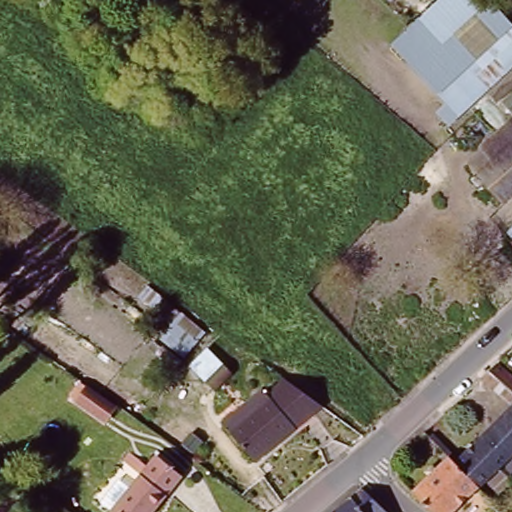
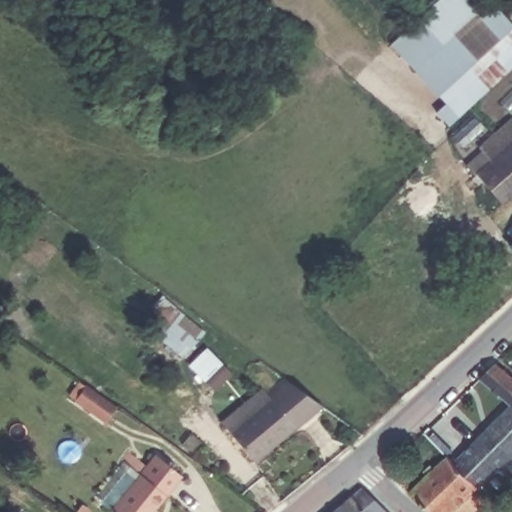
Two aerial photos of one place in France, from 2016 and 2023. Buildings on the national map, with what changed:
unchanged [(449,126),(435,111),(445,101),(389,44),(435,0),(491,0),(512,23),(512,67),(449,126)]
unchanged [(469,162),(482,151),(480,147),(512,119),(512,142),(477,172),(469,162)]
unchanged [(503,202),(477,172),(512,142),(512,194),(503,202)]
unchanged [(512,240),(512,248),(508,244),(512,240)]
unchanged [(489,482),(498,491),(488,501),(479,492),(469,481),(455,467),(512,412),(481,381),(496,366),(512,383),(512,459),(489,482)]
unchanged [(320,404),(255,460),(229,431),(269,396),(266,392),(283,377),(320,404)]
unchanged [(189,475),(160,512),(109,512),(106,510),(154,448),(189,475)]
unchanged [(431,512),(413,494),(448,460),(455,467),(469,481),(479,492),(458,512),(431,512)]
unchanged [(384,512),(341,512),(362,495),(384,512)]

